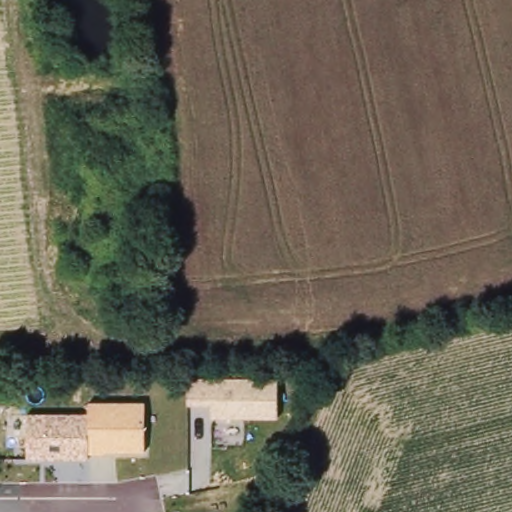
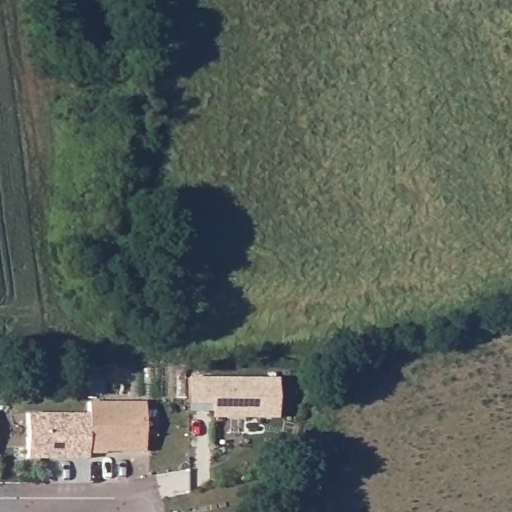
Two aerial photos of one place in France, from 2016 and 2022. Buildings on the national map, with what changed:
unchanged [(211,405),(186,403),(187,378),(278,380),(279,417),(210,418),(211,405)]
unchanged [(89,452),(89,461),(26,459),(26,413),(89,414),(88,402),(144,403),(144,452),(89,452)]

